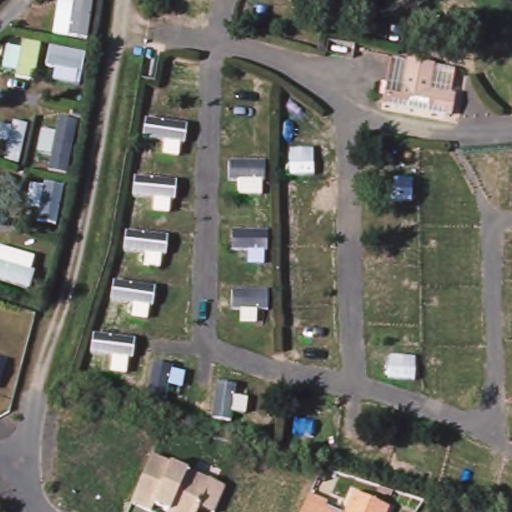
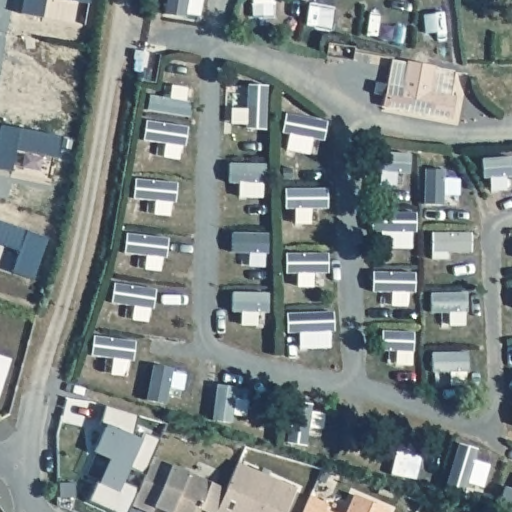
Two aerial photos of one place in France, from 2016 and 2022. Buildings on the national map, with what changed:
unchanged [(385,100),(389,78),(391,78),(396,54),(413,58),(414,55),(439,59),(439,62),(459,65),(456,83),(451,111),(385,100)]
new [(121,480),(137,488),(130,506),(127,512),(115,512),(87,499),(108,458),(95,451),(104,428),(98,424),(104,405),(138,414),(132,435),(141,438),(143,433),(158,438),(149,456),(143,471),(128,465),(121,480)]
unchanged [(207,512),(198,509),(196,512),(166,512),(151,506),(149,512),(145,512),(129,506),(149,456),(170,465),(186,472),(225,489),(214,512),(207,512)]
new [(237,462),(294,487),(283,512),(214,512),(225,489),(237,462)]
unchanged [(388,509),(387,512),(344,512),(352,494),(388,509)]
unchanged [(324,508),(334,512),(301,512),(308,495),(326,503),(324,508)]

